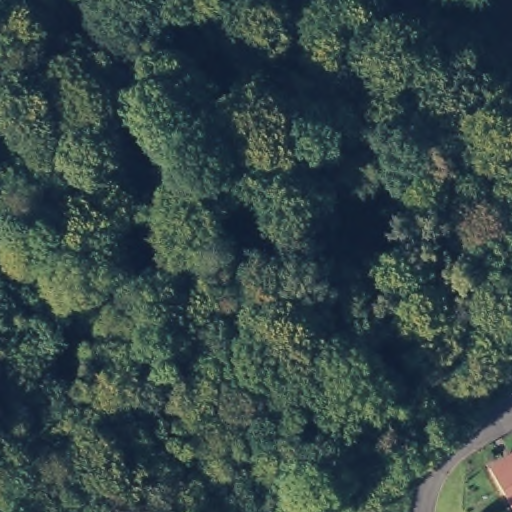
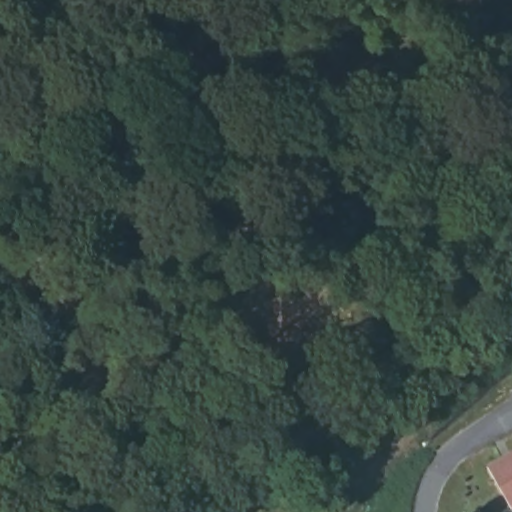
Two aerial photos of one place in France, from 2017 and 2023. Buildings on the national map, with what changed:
unchanged [(512,455),(512,506),(490,468),(512,455)]

